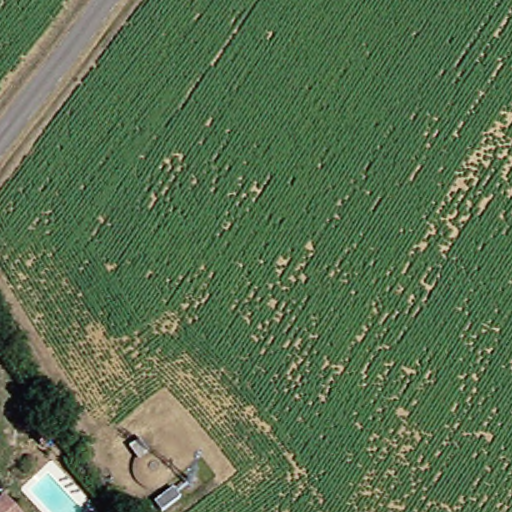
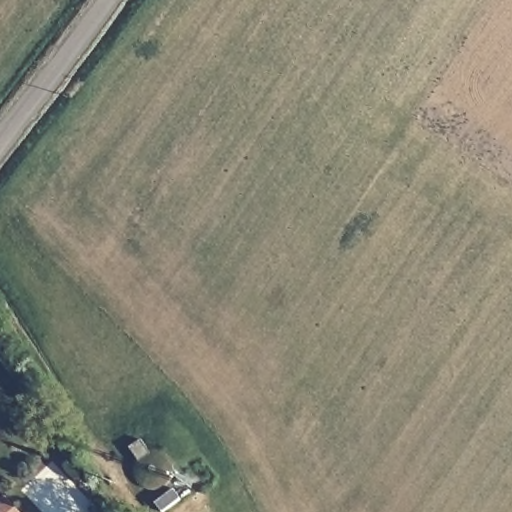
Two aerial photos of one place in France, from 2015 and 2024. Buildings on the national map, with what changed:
unchanged [(24,512),(0,512),(0,503),(9,495),(24,512)]

